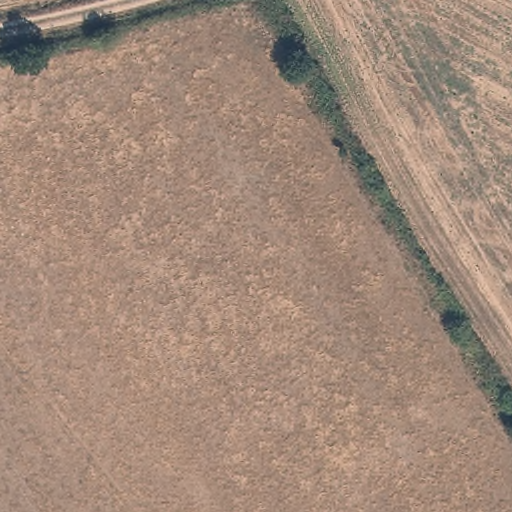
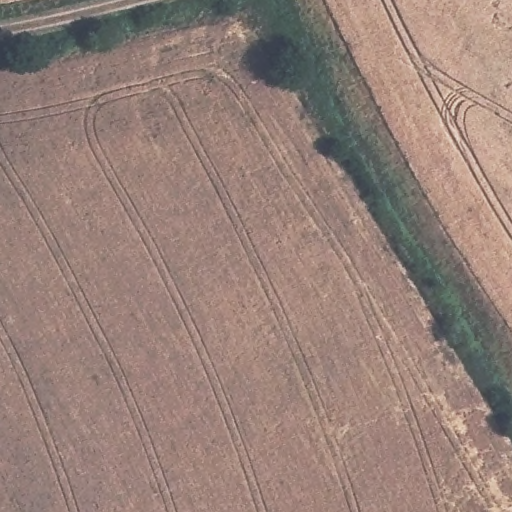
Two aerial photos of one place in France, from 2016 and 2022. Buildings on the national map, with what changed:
[]

